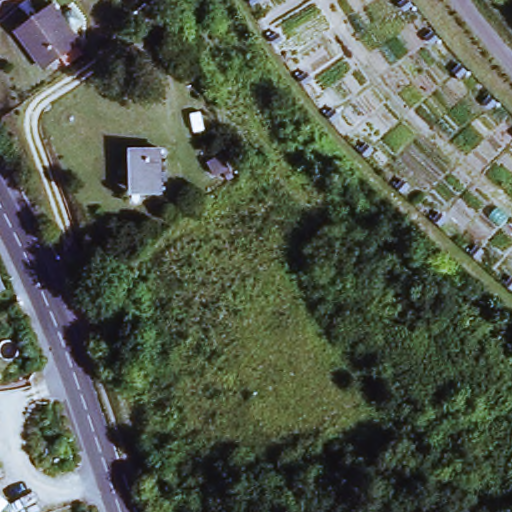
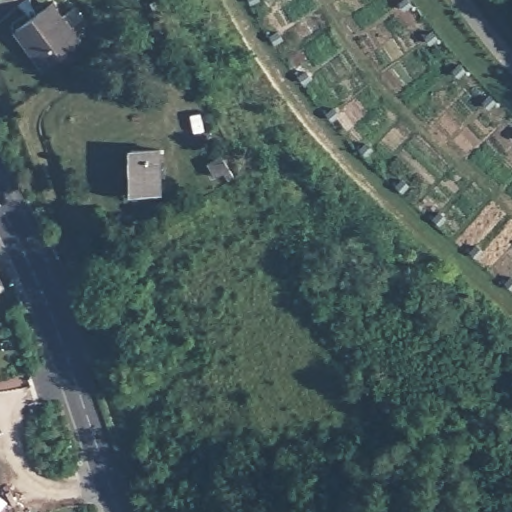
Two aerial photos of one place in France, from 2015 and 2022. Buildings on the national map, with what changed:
unchanged [(49,0),(78,41),(45,65),(16,24),(49,0)]
unchanged [(160,146),(160,189),(131,189),(131,146),(160,146)]
unchanged [(215,176),(207,163),(220,156),(228,169),(215,176)]

